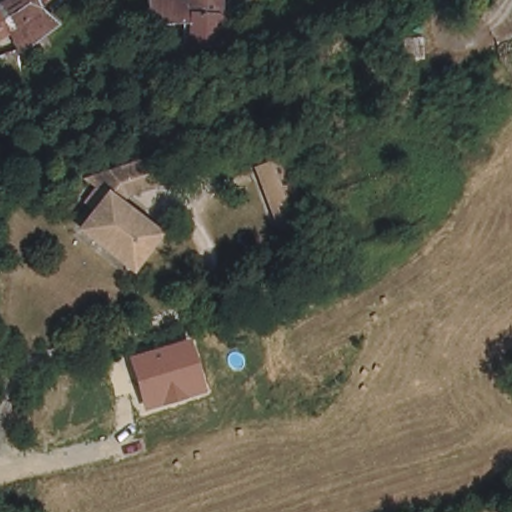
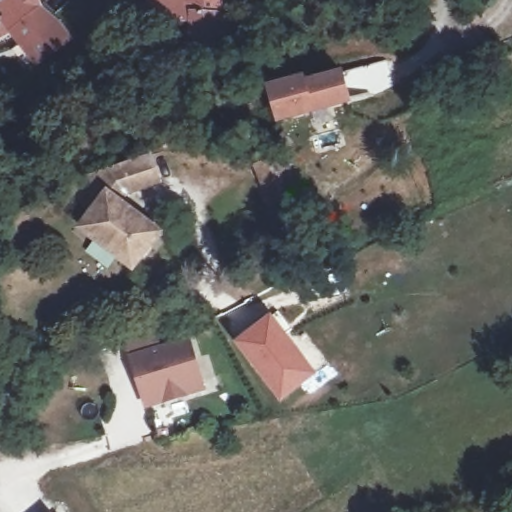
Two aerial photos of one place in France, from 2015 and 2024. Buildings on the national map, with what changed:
unchanged [(1,26),(0,27),(0,0),(33,0),(34,2),(47,12),(52,18),(53,19),(53,20),(38,29),(43,37),(18,52),(17,50),(13,43),(11,44),(1,26)]
unchanged [(145,6),(163,8),(166,9),(166,0),(216,0),(216,27),(219,31),(221,31),(223,54),(186,57),(184,31),(148,30),(145,6)]
new [(304,77),(305,82),(342,72),(349,100),(279,118),(271,86),(304,77)]
unchanged [(98,209),(90,203),(101,189),(88,179),(126,167),(152,159),(161,185),(128,196),(122,205),(133,212),(138,217),(161,235),(135,268),(115,254),(101,243),(83,229),(98,209)]
unchanged [(256,169),(263,166),(281,159),(304,219),(285,225),(278,227),(256,169)]
new [(271,312),(318,372),(279,402),(233,341),(271,312)]
unchanged [(127,357),(191,339),(206,392),(143,410),(127,357)]

